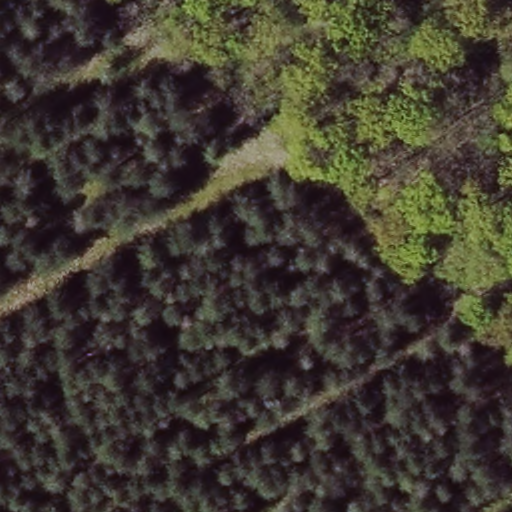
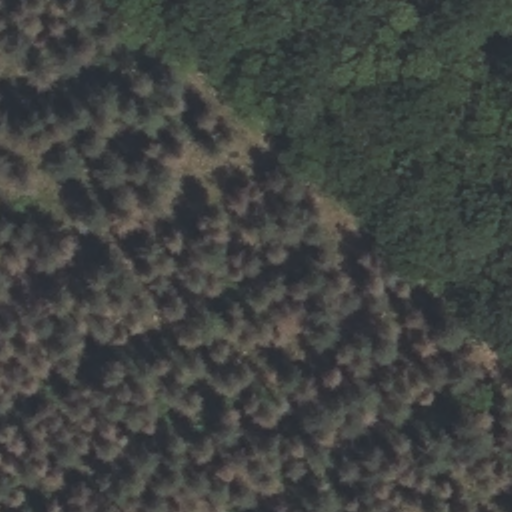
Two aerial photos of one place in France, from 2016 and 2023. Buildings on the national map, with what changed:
[]

